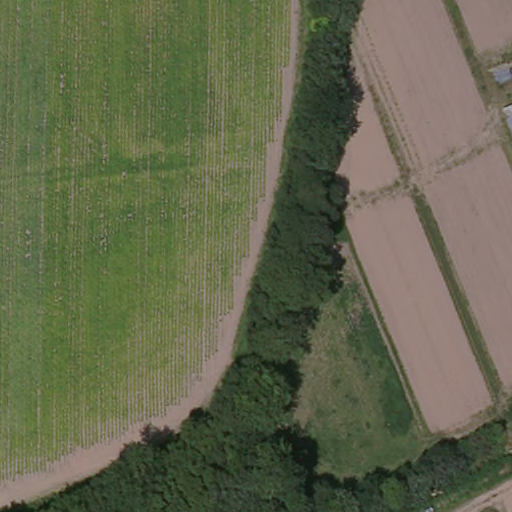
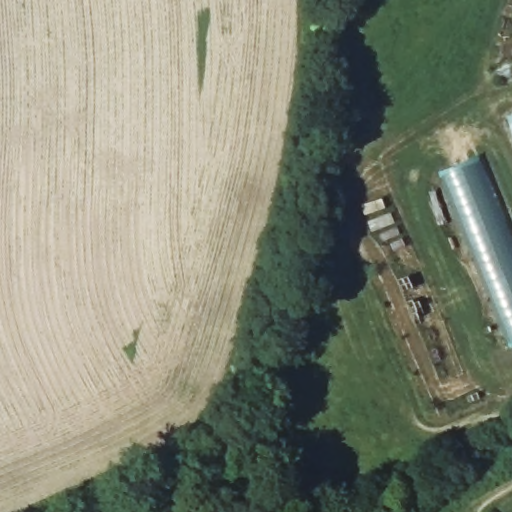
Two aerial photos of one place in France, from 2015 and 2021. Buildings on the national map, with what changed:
unchanged [(512,107),(512,132),(504,111),(512,107)]
new [(443,170),(478,155),(512,240),(512,340),(443,170)]

